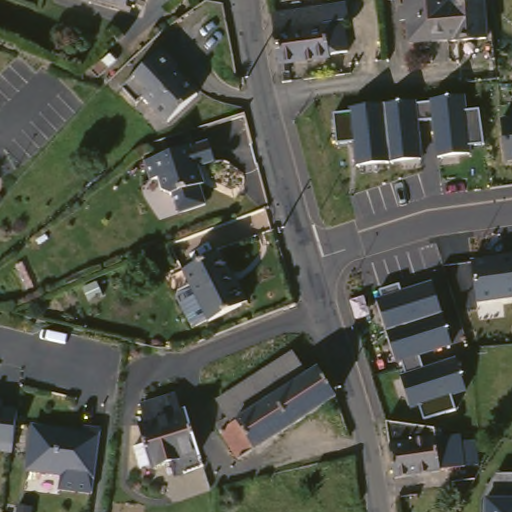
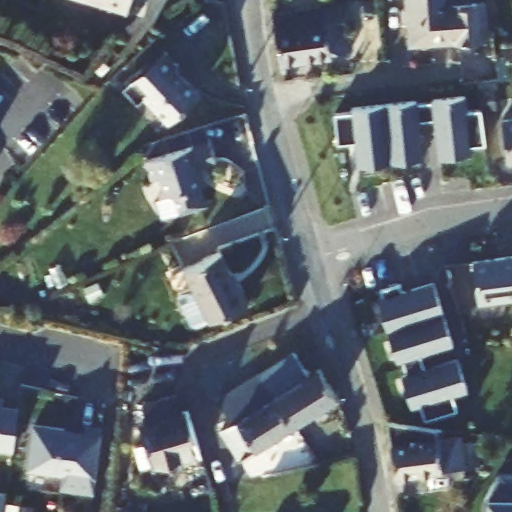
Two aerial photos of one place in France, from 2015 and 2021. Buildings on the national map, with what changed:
unchanged [(136,5),(121,0),(137,0),(136,5)]
unchanged [(339,0),(356,0),(359,14),(353,15),(358,45),(338,49),(339,51),(289,59),(288,54),(281,10),(281,9),(331,1),(339,0)]
unchanged [(460,36),(459,36),(438,37),(438,30),(418,31),(415,0),(458,0),(460,36)]
unchanged [(498,34),(460,37),(460,36),(458,0),(494,0),(498,34)]
unchanged [(172,45),(187,61),(183,65),(207,90),(179,117),(154,92),(147,100),(131,85),(172,45)]
unchanged [(468,145),(469,155),(439,157),(434,120),(418,122),(423,160),(358,166),(354,142),(339,144),(335,115),(353,113),(352,108),(387,105),(464,96),(467,114),(480,111),(485,145),(468,145)]
unchanged [(507,162),(501,122),(512,120),(512,161),(507,162)]
unchanged [(219,136),(225,157),(209,162),(214,179),(210,180),(215,200),(189,208),(184,189),(176,191),(170,172),(161,175),(155,155),(219,136)]
unchanged [(205,318),(193,292),(194,286),(203,283),(194,265),(230,247),(244,277),(247,277),(257,297),(219,316),(211,320),(205,318)]
unchanged [(481,305),(472,262),(512,255),(512,299),(481,305)]
unchanged [(421,355),(426,371),(457,362),(467,391),(452,396),(457,410),(424,420),(420,405),(411,408),(401,376),(409,374),(404,362),(398,364),(377,300),(383,298),(380,290),(399,284),(403,293),(434,284),(454,343),(421,355)]
unchanged [(346,392),(303,420),(269,370),(302,348),(317,371),(329,364),(346,392)]
unchanged [(243,420),(228,397),(269,370),(303,420),(249,455),(231,427),(243,420)]
unchanged [(151,406),(184,395),(189,411),(196,410),(197,411),(209,451),(161,465),(160,465),(149,467),(143,446),(154,444),(149,425),(154,423),(154,420),(151,406)]
unchanged [(0,407),(21,410),(11,452),(0,449),(0,407)]
unchanged [(90,480),(28,471),(39,419),(99,429),(90,480)]
unchanged [(485,480),(473,481),(471,470),(405,480),(397,423),(451,431),(452,438),(468,436),(468,443),(486,441),(489,468),(492,467),(485,480)]
unchanged [(482,512),(483,500),(499,474),(512,474),(512,512),(482,512)]

